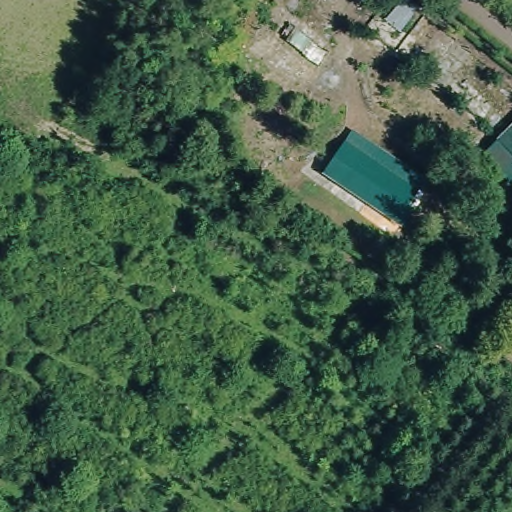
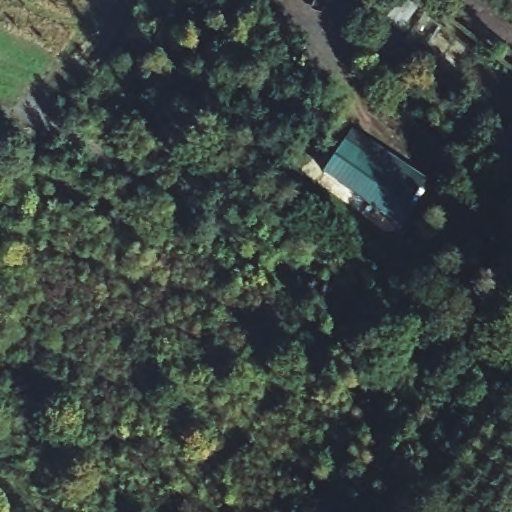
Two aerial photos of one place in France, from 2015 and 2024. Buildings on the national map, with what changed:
new [(479,155),(512,121),(512,185),(479,155)]
unchanged [(404,224),(324,173),(353,126),(430,176),(404,224)]

